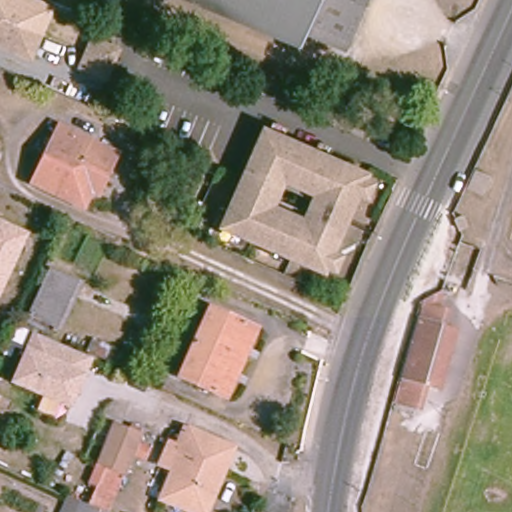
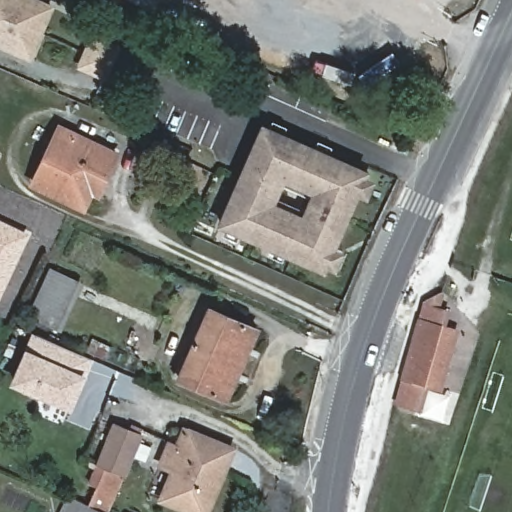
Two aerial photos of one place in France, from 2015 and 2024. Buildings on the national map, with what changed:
unchanged [(0,46),(0,0),(30,0),(50,8),(29,58),(0,46)]
demolished [(303,31),(297,45),(190,0),(360,0),(340,47),(303,31)]
unchanged [(105,78),(79,67),(92,37),(117,47),(105,78)]
unchanged [(427,116),(420,131),(405,123),(411,108),(427,115),(427,116)]
unchanged [(263,127),(313,149),(330,157),(366,173),(323,269),(220,224),(263,127)]
unchanged [(90,192),(82,207),(32,183),(59,129),(94,144),(112,153),(107,162),(112,164),(101,187),(97,195),(90,192)]
unchanged [(484,176),(475,194),(464,187),(473,169),(484,176)]
unchanged [(464,226),(457,229),(453,218),(460,216),(464,226)]
unchanged [(0,296),(0,218),(29,231),(0,296)]
unchanged [(51,269),(81,284),(59,329),(29,314),(51,269)]
unchanged [(456,335),(440,393),(422,388),(416,412),(397,407),(425,306),(438,290),(441,296),(437,313),(443,315),(438,330),(456,335)]
unchanged [(209,309),(257,331),(226,401),(177,379),(209,309)]
unchanged [(9,385),(25,349),(34,334),(92,360),(84,379),(70,412),(9,385)]
unchanged [(114,425),(140,436),(124,475),(98,464),(114,425)]
unchanged [(179,454),(174,451),(183,428),(219,443),(231,448),(206,512),(187,512),(160,501),(179,454)]
unchanged [(86,507),(95,486),(117,495),(110,512),(63,512),(67,499),(86,507)]

